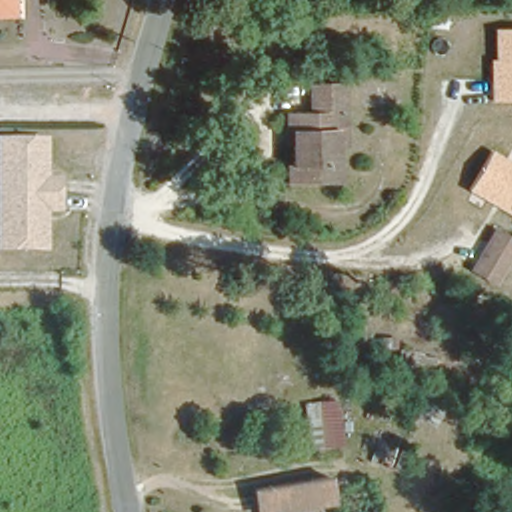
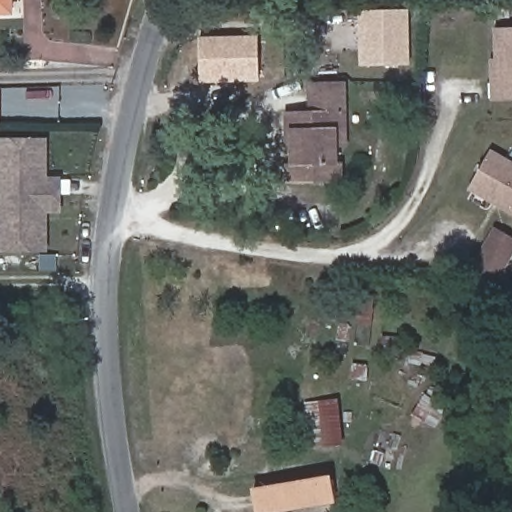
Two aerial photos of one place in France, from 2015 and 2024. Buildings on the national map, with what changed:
unchanged [(0,9),(0,0),(2,0),(2,9),(0,9)]
new [(360,65),(359,11),(408,10),(410,65),(360,65)]
unchanged [(489,101),(487,58),(494,58),(493,29),(512,29),(512,101),(489,101)]
new [(259,82),(201,83),(199,36),(258,35),(259,82)]
unchanged [(339,185),(282,184),(283,161),(290,161),(291,128),(282,128),(284,107),(307,108),(308,79),(343,79),(342,112),(341,145),(332,145),(332,164),(340,165),(339,185)]
unchanged [(44,176),(58,176),(56,208),(43,208),(41,247),(0,246),(0,137),(45,137),(44,176)]
unchanged [(468,189),(490,148),(512,161),(512,214),(468,189)]
unchanged [(494,276),(472,265),(494,226),(512,236),(512,243),(494,276)]
unchanged [(343,435),(310,437),(304,399),(338,396),(343,435)]
unchanged [(270,512),(255,512),(252,491),(327,476),(331,499),(270,512)]

